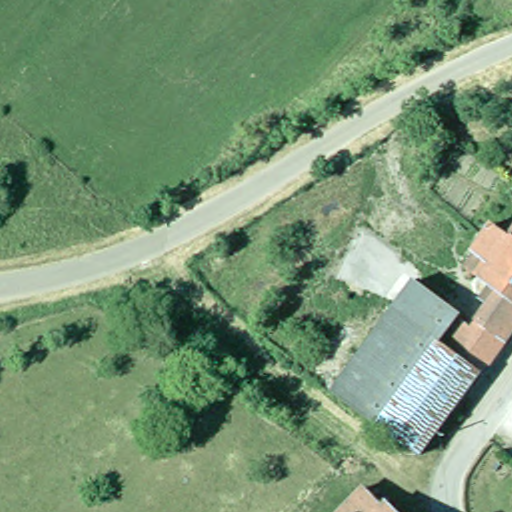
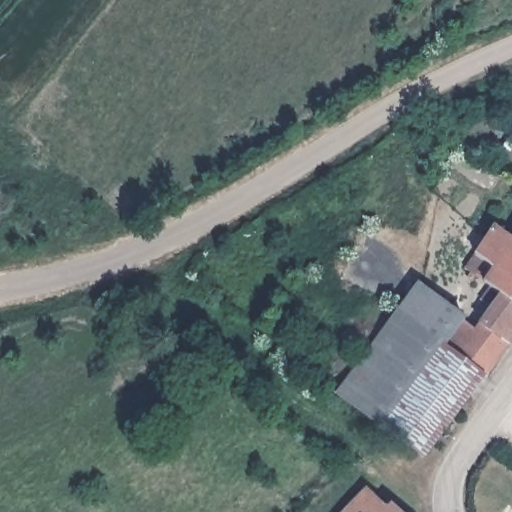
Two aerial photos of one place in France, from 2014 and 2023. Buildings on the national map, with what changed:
unchanged [(485,325),(495,312),(491,310),(485,305),(496,290),(482,280),(477,285),(473,281),(472,280),(475,275),(470,272),(500,230),(512,238),(512,344),(485,325)]
unchanged [(427,460),(340,396),(420,285),(457,312),(455,315),(436,340),(448,349),(429,376),(467,405),(427,460)]
unchanged [(487,377),(467,405),(429,376),(448,349),(436,340),(455,315),(506,354),(489,378),(487,377)]
unchanged [(365,493),(367,492),(387,512),(348,512),(365,493)]
unchanged [(392,508),(395,512),(388,512),(392,508)]

